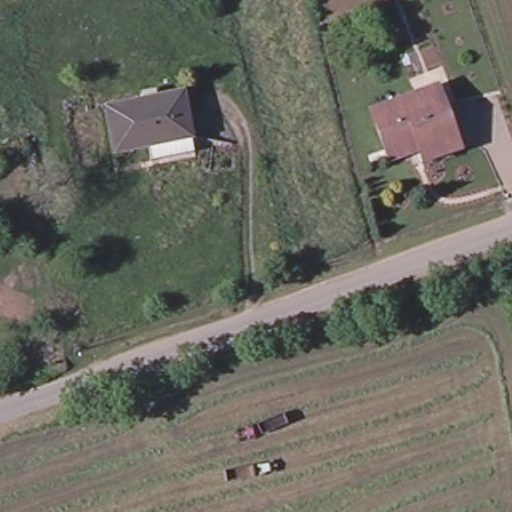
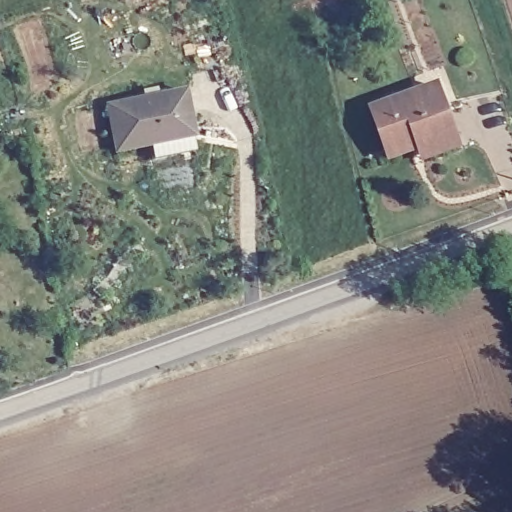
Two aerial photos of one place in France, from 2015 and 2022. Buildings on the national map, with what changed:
unchanged [(421,161),(418,151),(388,161),(372,111),(438,88),(455,137),(459,149),(421,161)]
unchanged [(153,162),(149,142),(114,149),(105,102),(179,89),(189,135),(193,155),(153,162)]

